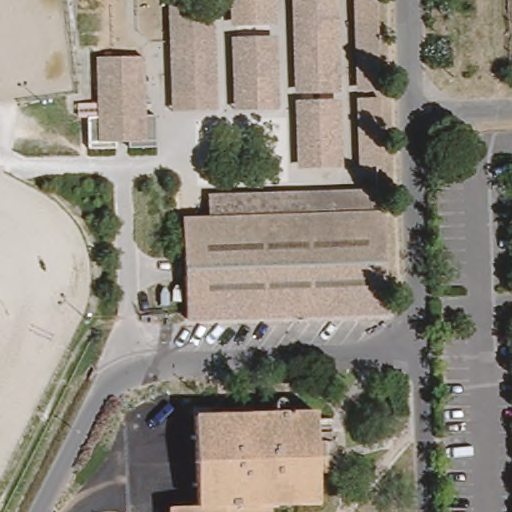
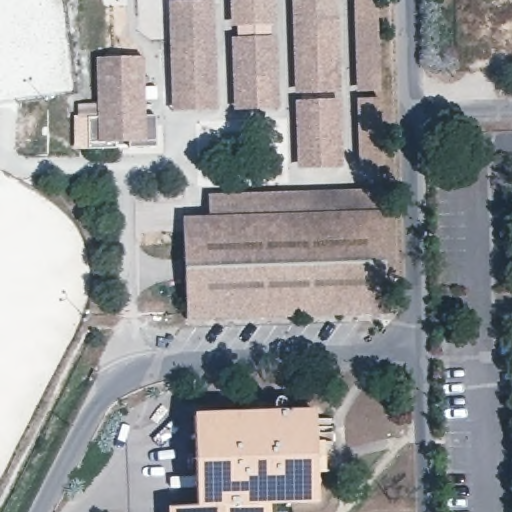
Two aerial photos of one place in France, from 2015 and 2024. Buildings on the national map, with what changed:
unchanged [(276,0),(277,24),(272,24),(236,25),(231,25),(230,0),(276,0)]
unchanged [(342,91),(305,92),(300,92),(298,39),(297,0),(343,0),(347,91),(342,91)]
unchanged [(382,0),(385,90),(365,90),(362,90),(359,0),(382,0)]
unchanged [(218,109),(182,110),(178,9),(215,8),(218,109)]
unchanged [(232,36),(237,36),(272,34),(277,34),(280,107),(275,108),(239,109),(234,109),(232,36)]
unchanged [(147,114),(156,114),(157,146),(129,147),(128,141),(117,141),(117,147),(89,147),(88,116),(98,115),(97,56),(145,55),(147,114)]
unchanged [(362,97),(365,97),(385,96),(388,165),(367,165),(365,165),(362,97)]
unchanged [(300,99),(305,99),(342,98),(347,97),(349,167),(344,167),(307,168),(302,168),(300,99)]
unchanged [(213,194),(384,188),(385,209),(215,215),(213,194)]
unchanged [(393,313),(192,319),(188,216),(215,215),(385,209),(390,209),(393,313)]
unchanged [(195,409),(313,406),(317,495),(270,496),(197,499),(195,409)]
unchanged [(169,500),(197,499),(270,496),(270,512),(169,512),(169,500)]

